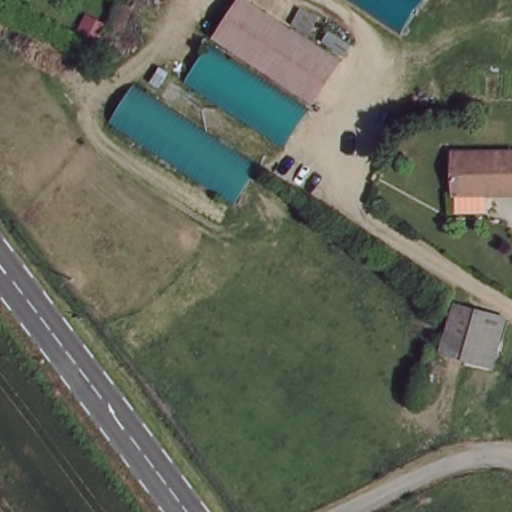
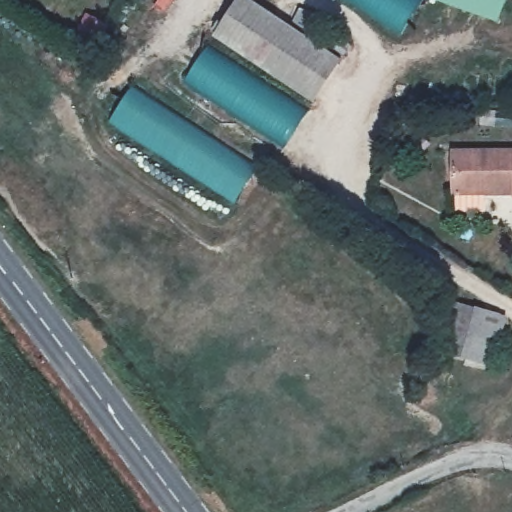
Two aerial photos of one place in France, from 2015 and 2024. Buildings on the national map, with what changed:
unchanged [(183,79),(233,0),(252,0),(338,53),(284,143),(183,79)]
unchanged [(350,0),(419,0),(401,31),(350,0)]
new [(429,0),(506,0),(497,24),(429,0)]
unchanged [(235,204),(108,120),(134,81),(260,164),(235,204)]
unchanged [(453,146),(512,146),(512,186),(453,186),(453,146)]
unchanged [(484,370),(436,353),(453,306),(501,323),(484,370)]

